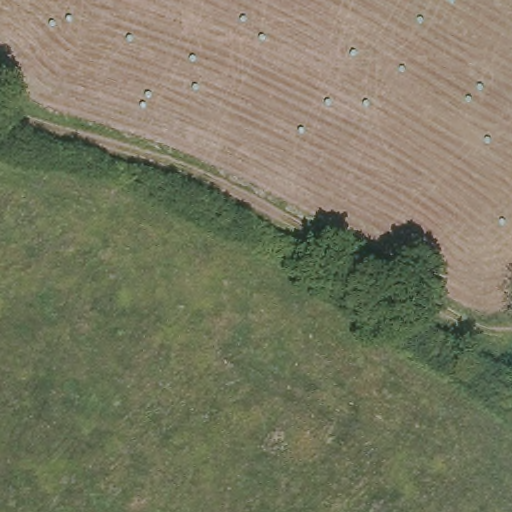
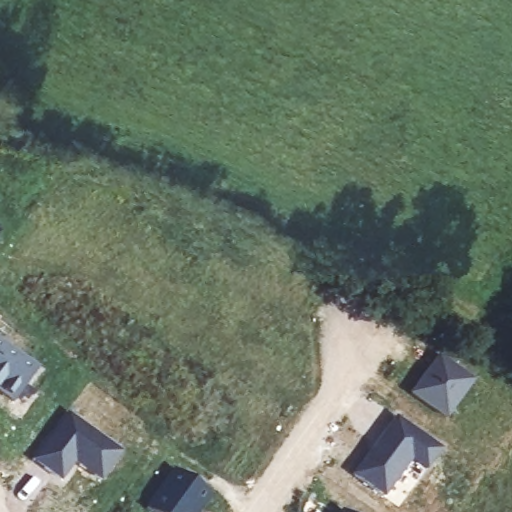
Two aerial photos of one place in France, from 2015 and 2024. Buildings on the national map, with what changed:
new [(1,231),(0,232),(0,230),(1,231)]
new [(0,394),(0,337),(39,365),(13,403),(0,394)]
new [(477,380),(447,421),(409,395),(439,353),(477,380)]
new [(123,451),(103,480),(76,461),(63,481),(33,458),(70,410),(123,451)]
new [(442,449),(426,472),(411,460),(383,498),(353,475),(397,415),(442,449)]
new [(211,494),(199,512),(149,512),(146,509),(174,467),(211,494)]
new [(346,512),(340,512),(343,509),(346,512)]

